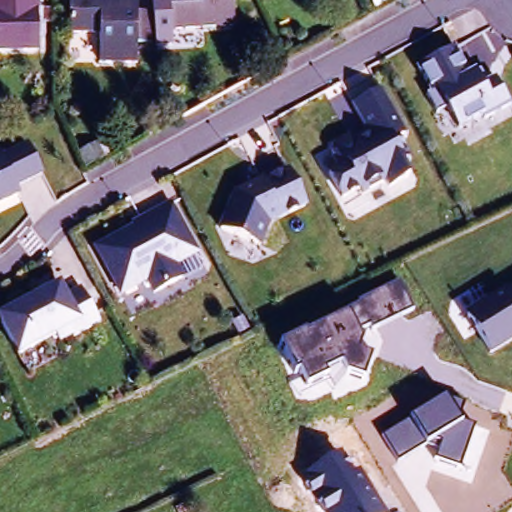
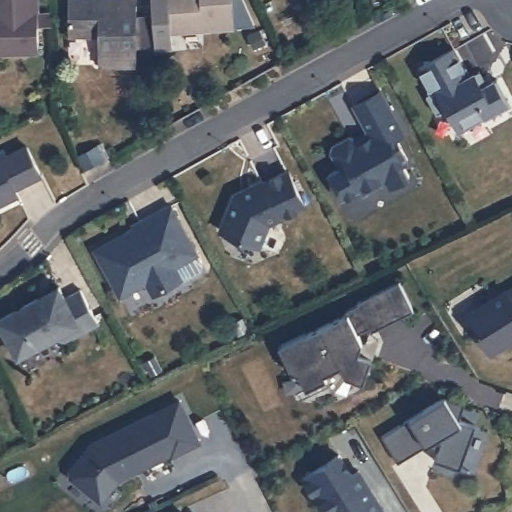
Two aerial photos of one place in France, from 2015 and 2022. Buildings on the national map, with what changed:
unchanged [(0,57),(0,0),(38,0),(38,56),(0,57)]
unchanged [(100,68),(100,39),(70,39),(70,0),(103,0),(137,0),(137,9),(137,18),(152,18),(152,49),(137,49),(137,68),(100,68)]
unchanged [(167,0),(233,0),(235,31),(170,37),(167,0)]
unchanged [(445,111),(422,60),(457,45),(470,70),(482,66),(492,86),(502,80),(512,103),(512,105),(490,119),(485,114),(460,129),(450,108),(445,111)]
unchanged [(322,154),(367,133),(350,104),(387,87),(427,169),(392,187),(385,176),(343,193),(322,154)]
unchanged [(82,156),(99,146),(104,144),(110,156),(105,158),(87,168),(82,156)]
unchanged [(0,206),(0,154),(1,154),(2,158),(28,145),(43,176),(17,189),(21,195),(0,206)]
unchanged [(240,187),(289,166),(309,206),(275,220),(266,244),(223,228),(240,187)]
unchanged [(94,250),(182,204),(204,252),(181,263),(187,278),(155,294),(148,283),(119,293),(94,250)]
unchanged [(400,281),(413,310),(372,330),(370,325),(358,331),(362,338),(358,351),(372,356),(364,379),(348,374),(335,391),(328,377),(309,387),(300,370),(295,373),(282,338),(400,281)]
unchanged [(512,338),(490,351),(468,309),(512,285),(512,338)]
unchanged [(0,327),(0,317),(68,286),(72,294),(85,288),(102,325),(81,337),(75,329),(17,358),(0,327)]
unchanged [(412,417),(445,396),(465,404),(460,419),(476,425),(460,468),(435,459),(437,449),(425,444),(398,460),(387,433),(412,417)]
new [(92,444),(180,399),(200,440),(173,454),(172,452),(143,467),(142,464),(133,469),(135,471),(120,478),(103,500),(73,477),(72,469),(92,444)]
unchanged [(342,450),(354,471),(360,468),(386,512),(330,512),(328,509),(325,512),(323,512),(304,471),(342,450)]

